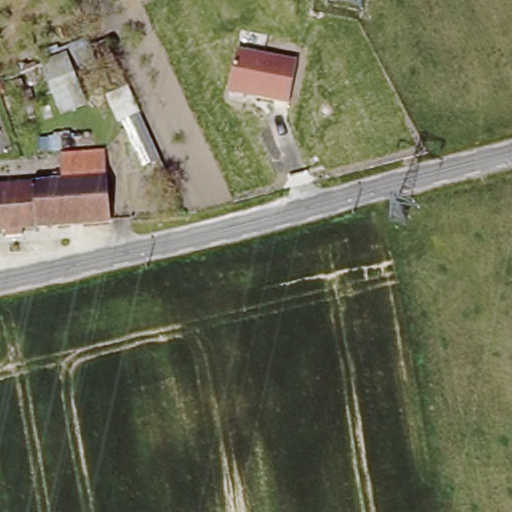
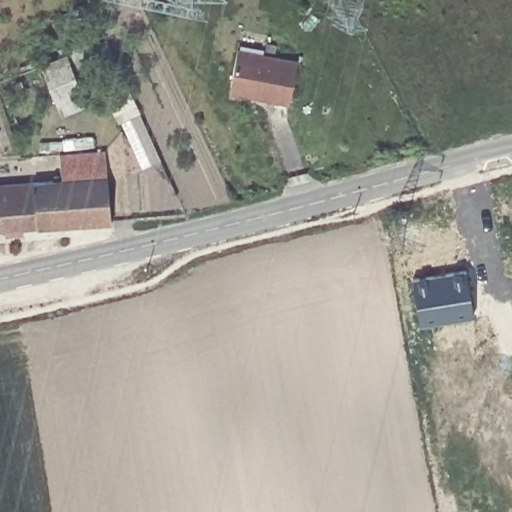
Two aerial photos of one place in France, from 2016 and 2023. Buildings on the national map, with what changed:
unchanged [(296,59),(289,102),(231,92),(238,47),(296,59)]
unchanged [(67,112),(43,60),(72,52),(93,101),(67,112)]
unchanged [(21,142),(23,146),(18,149),(15,144),(21,142)]
unchanged [(58,159),(105,157),(109,225),(19,231),(19,239),(3,241),(2,233),(0,233),(0,186),(59,183),(58,159)]
new [(464,267),(472,313),(419,321),(411,275),(464,267)]

